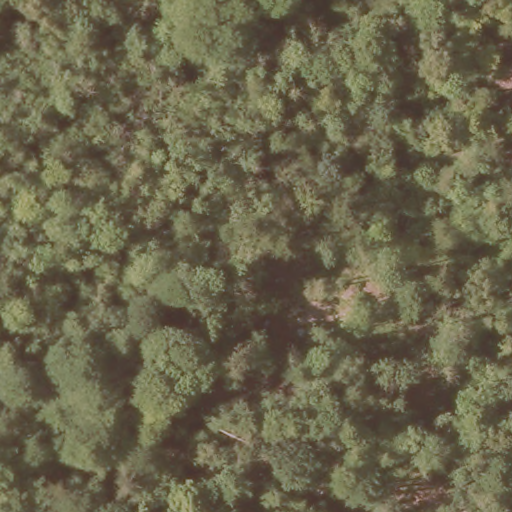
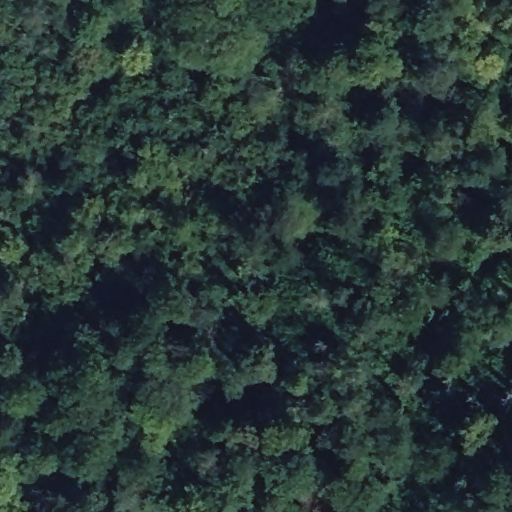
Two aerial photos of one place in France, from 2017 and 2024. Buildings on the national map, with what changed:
[]

